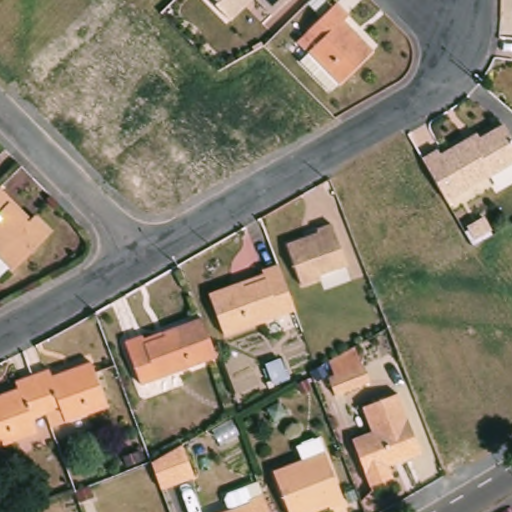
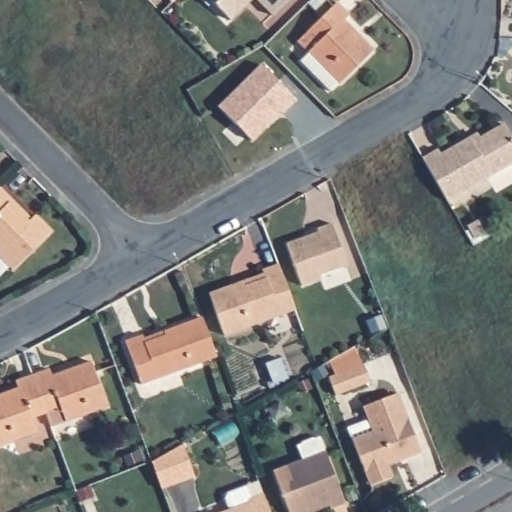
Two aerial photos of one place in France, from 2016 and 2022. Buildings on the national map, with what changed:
new [(168,0),(175,0),(171,4),(168,0)]
unchanged [(210,0),(250,0),(229,20),(209,1),(210,0)]
unchanged [(255,0),(285,0),(269,15),(255,0)]
unchanged [(314,50),(301,38),(339,0),(342,0),(353,11),(349,16),(378,45),(335,89),(305,60),(314,50)]
new [(218,106),(260,65),(295,100),(282,114),(279,111),(265,125),(267,126),(252,141),(218,106)]
unchanged [(441,158),(470,140),(473,145),(504,126),(512,139),(512,166),(449,204),(424,162),(438,153),(441,158)]
unchanged [(36,222),(39,219),(55,235),(17,273),(14,269),(2,280),(0,278),(0,193),(3,190),(17,203),(36,222)]
unchanged [(317,234),(316,230),(329,225),(346,266),(319,277),(321,280),(303,287),(287,246),(317,234)]
unchanged [(208,296),(238,284),(262,274),(261,272),(278,264),(290,295),(295,309),(224,337),(208,296)]
unchanged [(144,385),(127,341),(144,335),(147,343),(168,335),(166,332),(205,316),(220,356),(144,385)]
unchanged [(334,394),(328,377),(334,375),(328,361),(354,347),(361,364),(363,363),(370,379),(334,394)]
unchanged [(50,370),(53,376),(91,362),(109,409),(53,429),(48,416),(36,381),(34,376),(50,370)]
unchanged [(35,420),(40,434),(0,447),(0,395),(19,388),(17,382),(34,376),(36,381),(48,416),(35,420)]
unchanged [(393,479),(371,489),(352,443),(372,435),(363,411),(398,397),(421,455),(403,463),(388,469),(393,479)]
unchanged [(273,476),(300,465),(294,450),(319,440),(347,508),(336,512),(332,512),(331,511),(328,512),(287,512),(273,476)]
unchanged [(193,477),(160,489),(150,462),(181,445),(193,477)]
unchanged [(228,504),(231,499),(250,492),(263,487),(267,497),(272,512),(232,512),(228,504)]

